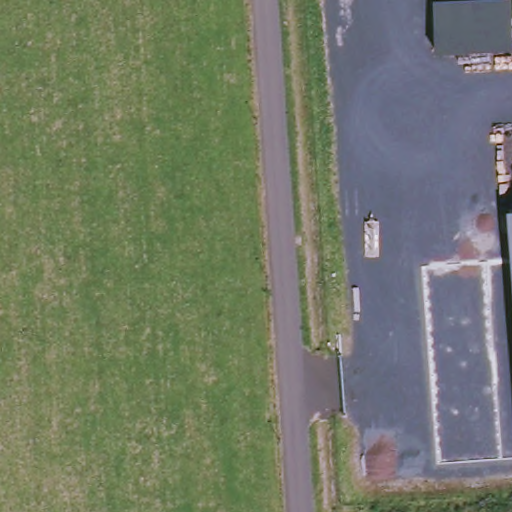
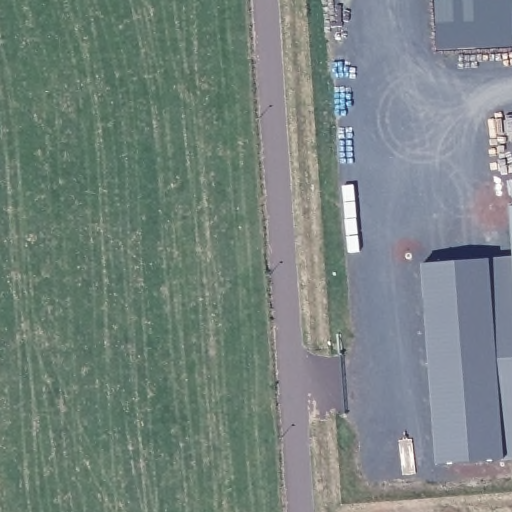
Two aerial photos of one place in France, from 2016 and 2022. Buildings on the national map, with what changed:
unchanged [(512,49),(437,49),(436,0),(512,0),(512,23),(512,49)]

